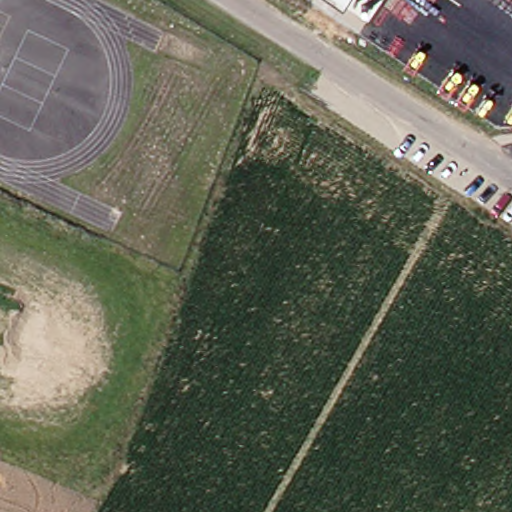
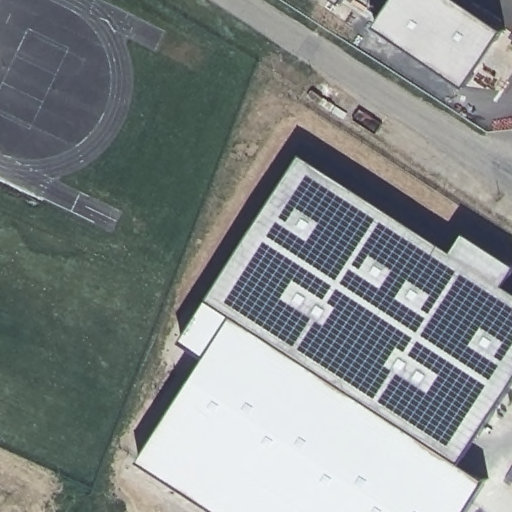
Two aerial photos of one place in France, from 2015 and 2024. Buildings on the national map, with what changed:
new [(342,3),(337,0),(345,0),(342,3)]
new [(392,0),(452,0),(502,33),(463,90),(372,30),(392,0)]
new [(306,153),(456,249),(468,231),(512,260),(512,276),(508,282),(512,285),(512,386),(464,460),(212,298),(215,294),(306,153)]
new [(466,512),(219,512),(140,460),(205,356),(184,342),(212,298),(464,460),(487,478),(466,512)]

